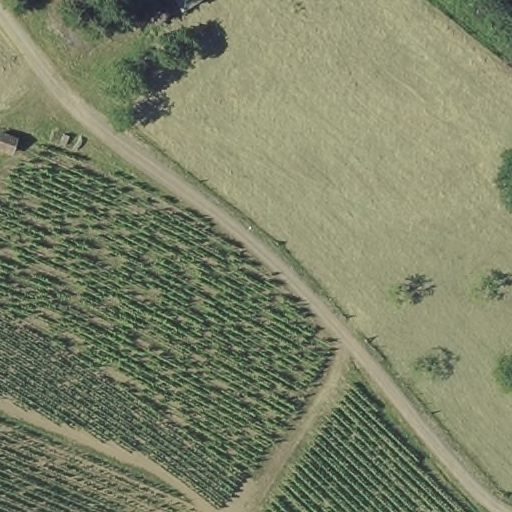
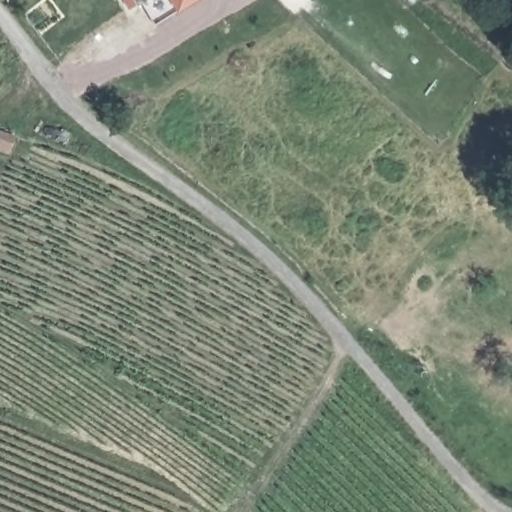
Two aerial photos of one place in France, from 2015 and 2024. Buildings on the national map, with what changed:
unchanged [(123,0),(144,0),(129,9),(123,0)]
unchanged [(164,0),(203,0),(176,17),(164,0)]

